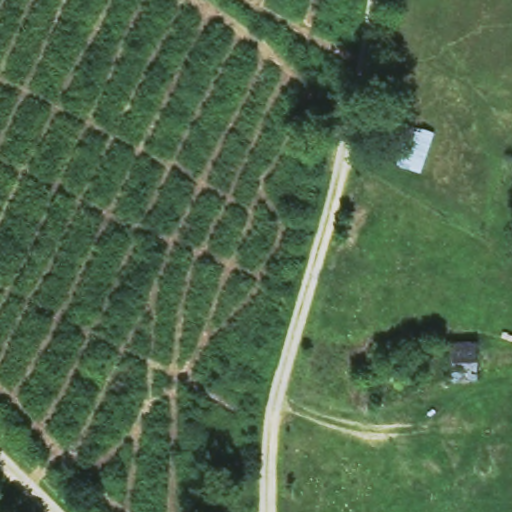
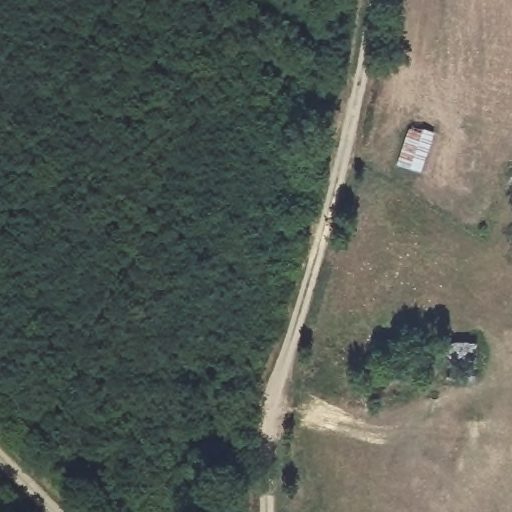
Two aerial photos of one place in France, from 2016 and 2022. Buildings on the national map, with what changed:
unchanged [(436,130),(419,172),(395,165),(409,121),(436,130)]

